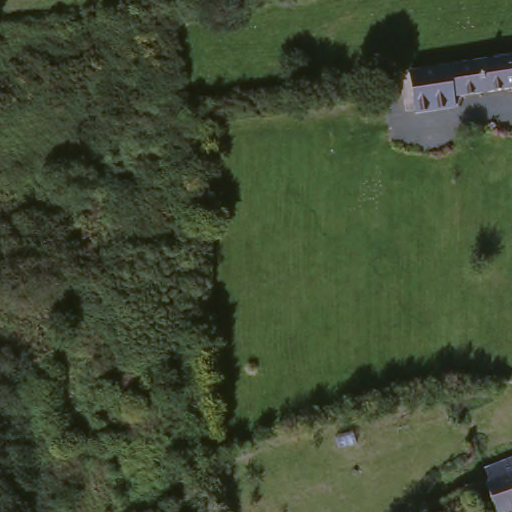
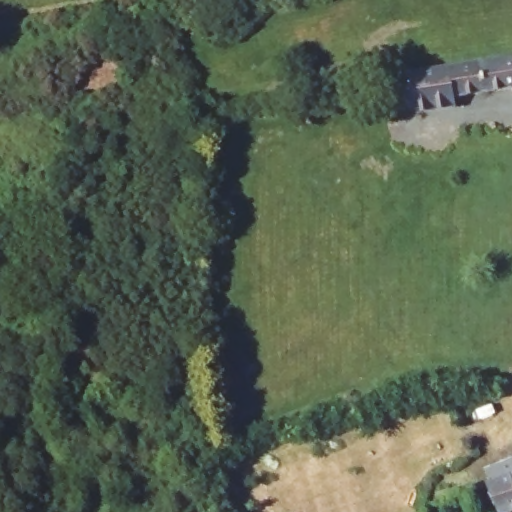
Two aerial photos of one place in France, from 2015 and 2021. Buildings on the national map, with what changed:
unchanged [(459,91),(461,101),(421,108),(414,68),(454,60),(512,51),(512,83),(459,91)]
unchanged [(512,512),(503,512),(491,483),(495,481),(490,469),(512,460),(512,512)]
unchanged [(433,504),(421,508),(416,496),(428,492),(427,489),(466,475),(471,489),(433,504)]

